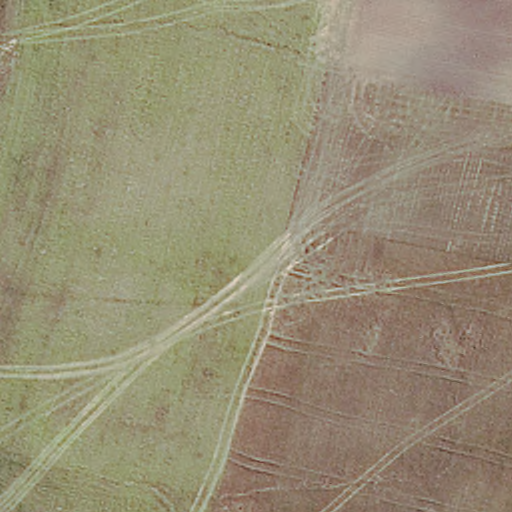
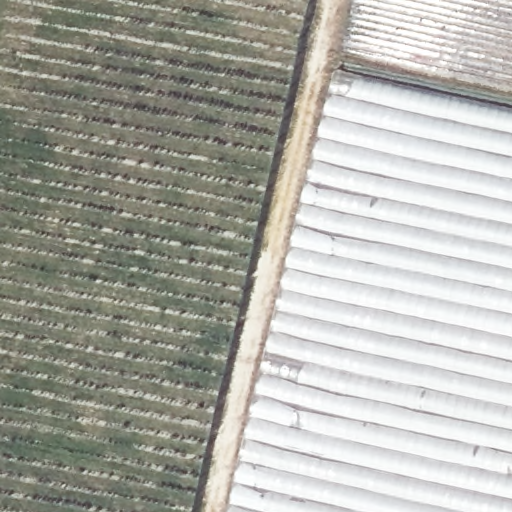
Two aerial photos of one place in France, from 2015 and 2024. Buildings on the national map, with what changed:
new [(318,127),(334,70),(512,108),(512,512),(227,512),(241,455),(318,127)]

